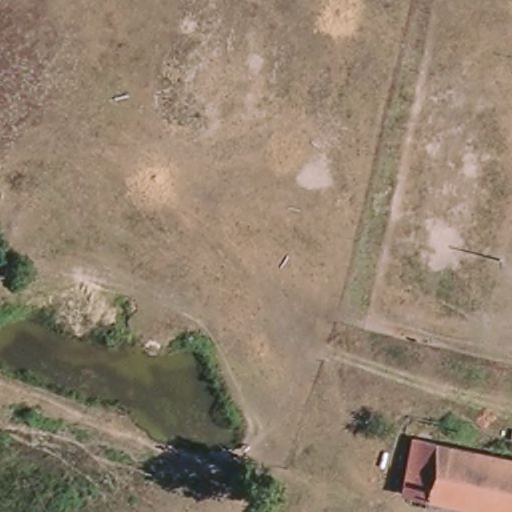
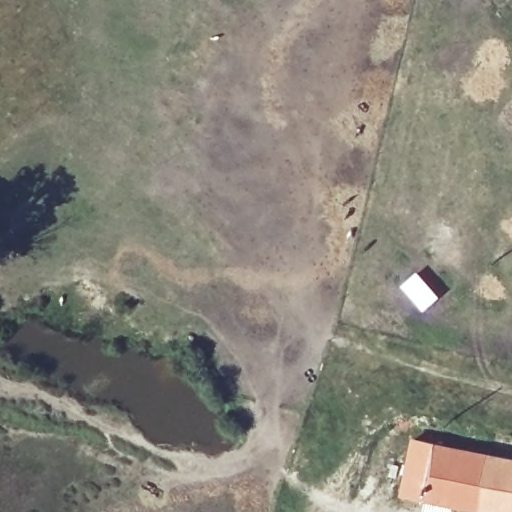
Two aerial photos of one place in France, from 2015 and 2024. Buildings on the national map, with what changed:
unchanged [(406,493),(414,441),(512,459),(512,512),(507,512),(406,493)]

